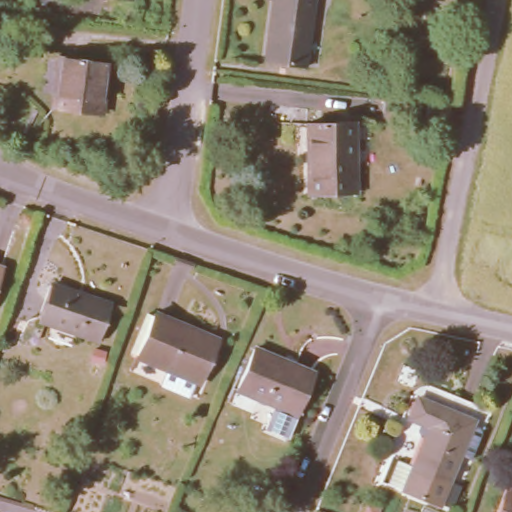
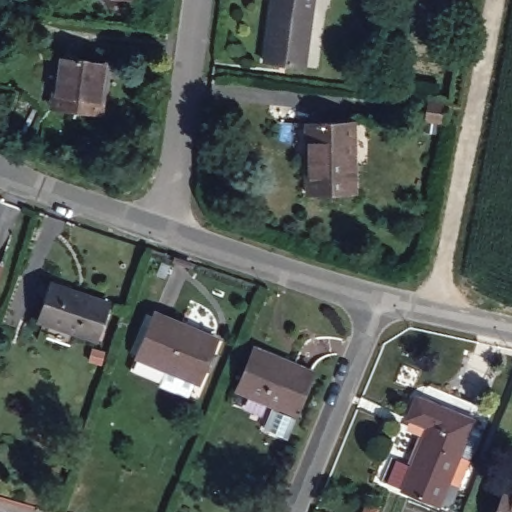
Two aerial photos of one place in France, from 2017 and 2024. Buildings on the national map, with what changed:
unchanged [(261,57),(268,0),(313,0),(305,62),(261,57)]
unchanged [(53,65),(100,71),(95,107),(48,102),(53,65)]
unchanged [(418,123),(422,98),(454,102),(449,127),(418,123)]
unchanged [(302,123),(348,123),(350,192),(302,193),(302,123)]
unchanged [(44,277),(104,300),(92,333),(32,308),(44,277)]
unchanged [(151,311),(214,336),(197,379),(135,353),(151,311)]
unchanged [(255,348),(310,370),(293,413),(238,391),(255,348)]
unchanged [(420,427),(404,421),(413,397),(467,419),(441,484),(404,468),(420,427)]
unchanged [(512,480),(512,512),(494,512),(506,478),(512,480)]

